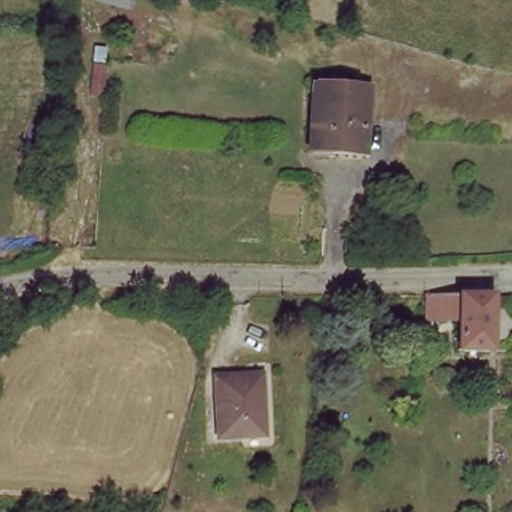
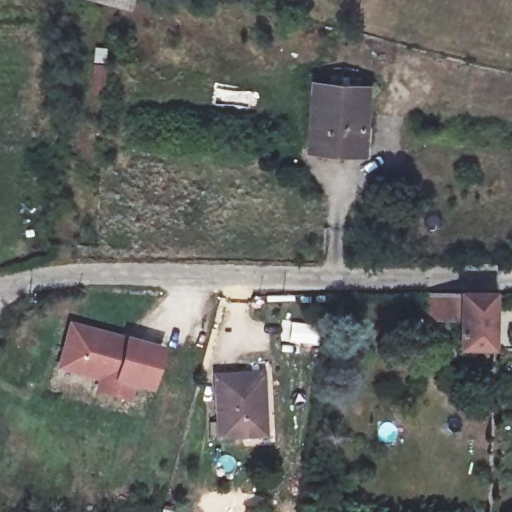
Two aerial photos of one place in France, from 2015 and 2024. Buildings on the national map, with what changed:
unchanged [(100,0),(130,0),(128,8),(100,0)]
unchanged [(336,90),(337,80),(364,82),(364,93),(373,93),(371,120),(370,142),(353,141),(339,141),(339,149),(316,148),(321,89),(336,90)]
unchanged [(492,352),(462,350),(466,319),(428,317),(430,292),(498,292),(492,352)]
new [(151,391),(135,387),(130,401),(95,393),(98,379),(58,370),(70,321),(125,336),(163,347),(151,391)]
unchanged [(266,369),(265,431),(222,432),(221,371),(266,369)]

